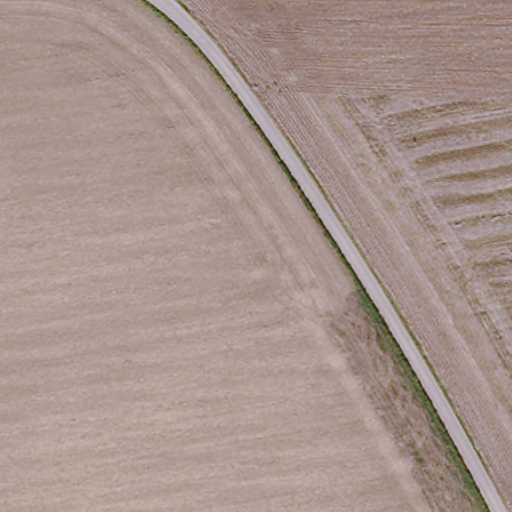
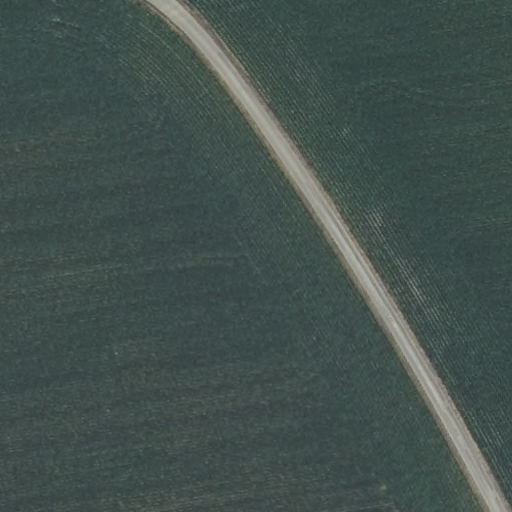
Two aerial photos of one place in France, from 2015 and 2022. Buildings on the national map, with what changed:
[]

